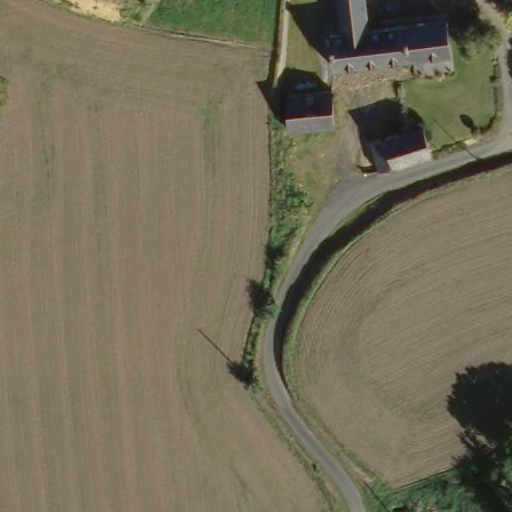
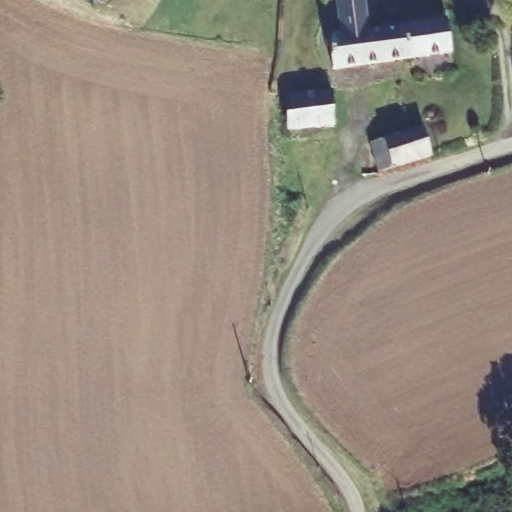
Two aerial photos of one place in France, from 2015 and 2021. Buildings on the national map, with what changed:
unchanged [(366,0),(371,30),(335,36),(330,0),(366,0)]
unchanged [(337,75),(331,36),(439,20),(446,55),(402,65),(337,75)]
unchanged [(284,100),(324,95),(328,129),(289,132),(284,100)]
unchanged [(369,151),(406,134),(419,131),(429,154),(411,160),(381,177),(369,151)]

